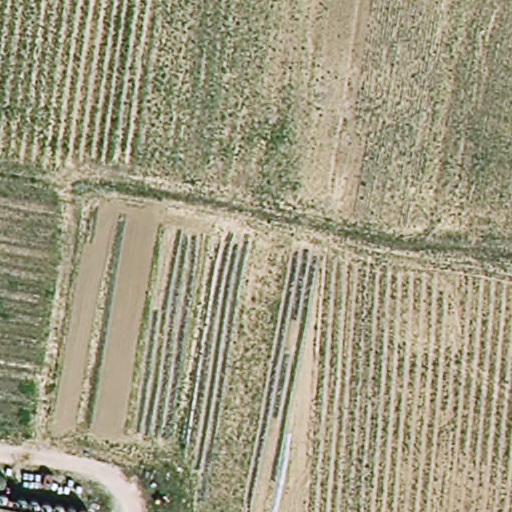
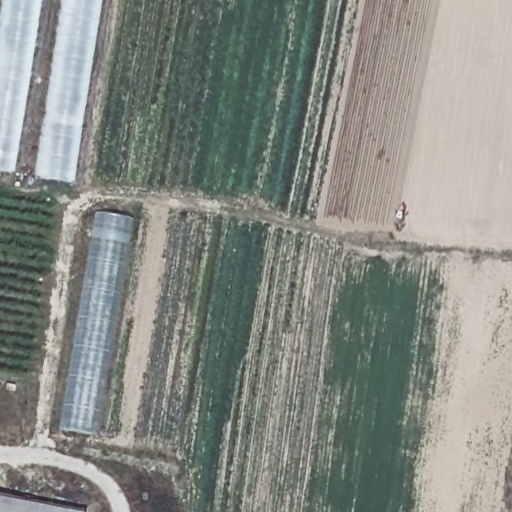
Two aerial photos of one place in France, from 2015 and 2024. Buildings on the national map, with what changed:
new [(1,0),(38,0),(10,168),(0,167),(0,4),(1,0)]
new [(60,0),(99,0),(71,178),(33,172),(60,0)]
new [(97,214),(133,220),(93,435),(61,430),(97,214)]
unchanged [(45,512),(0,512),(0,504),(45,512)]

